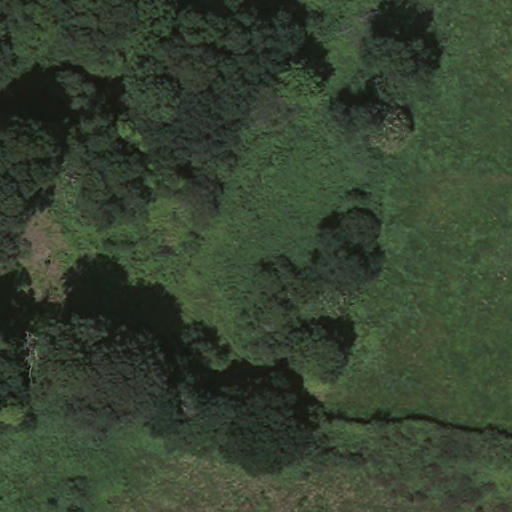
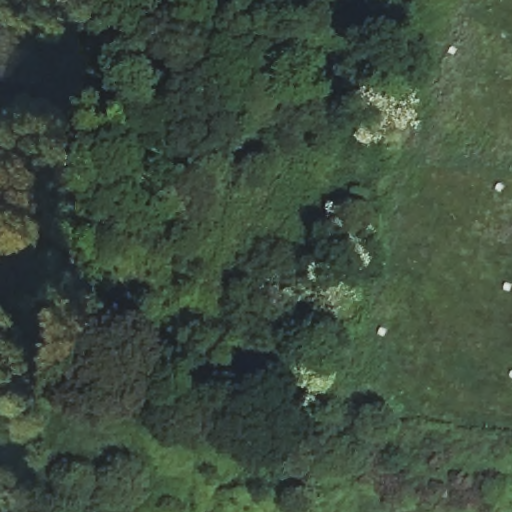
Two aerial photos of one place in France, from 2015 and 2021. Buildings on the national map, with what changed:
[]

